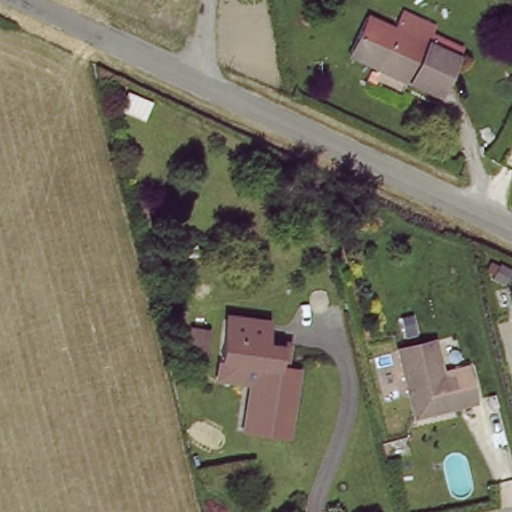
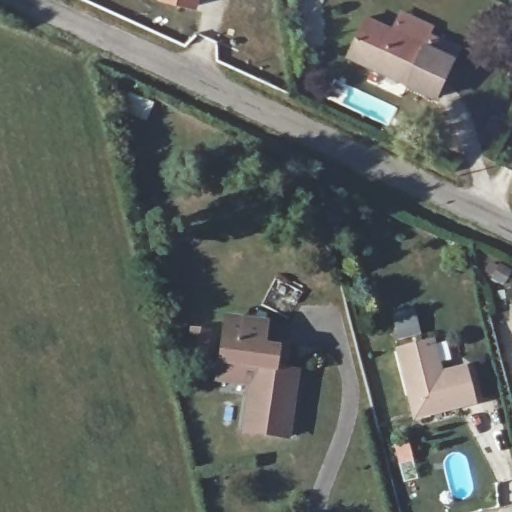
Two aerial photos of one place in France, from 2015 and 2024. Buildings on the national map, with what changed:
new [(197,10),(160,0),(200,0),(197,10)]
unchanged [(392,28),(450,57),(435,95),(402,77),(405,72),(378,57),(392,28)]
unchanged [(278,351),(289,353),(285,377),(298,379),(286,440),(247,434),(255,372),(221,367),(226,322),(262,326),(259,348),(278,351)]
unchanged [(465,376),(475,411),(419,427),(398,358),(431,350),(441,383),(465,376)]

